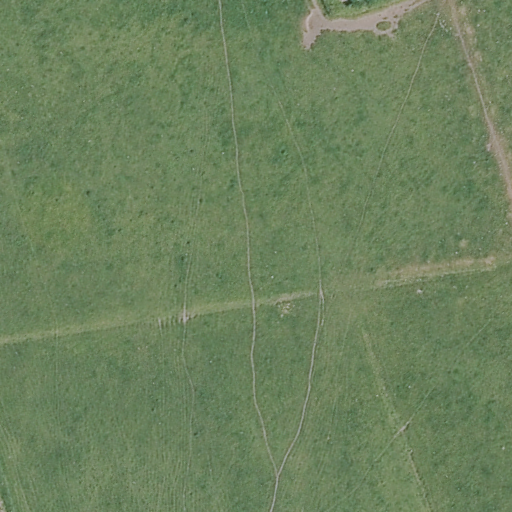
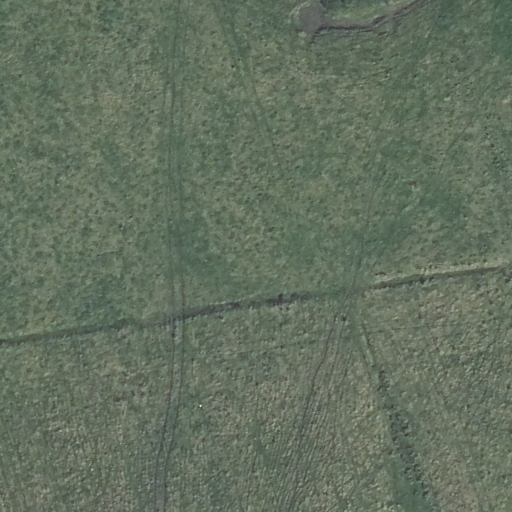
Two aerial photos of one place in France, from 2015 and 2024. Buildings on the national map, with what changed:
[]

